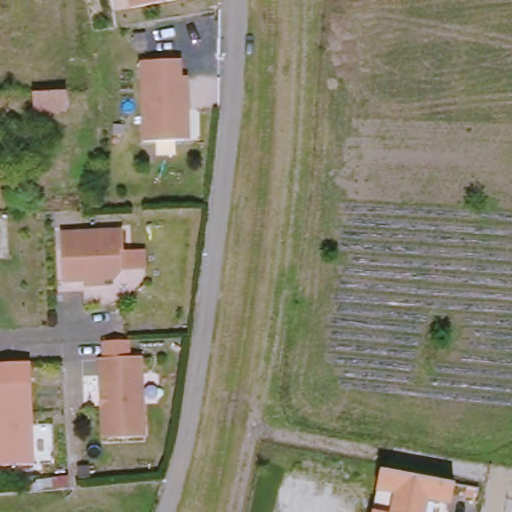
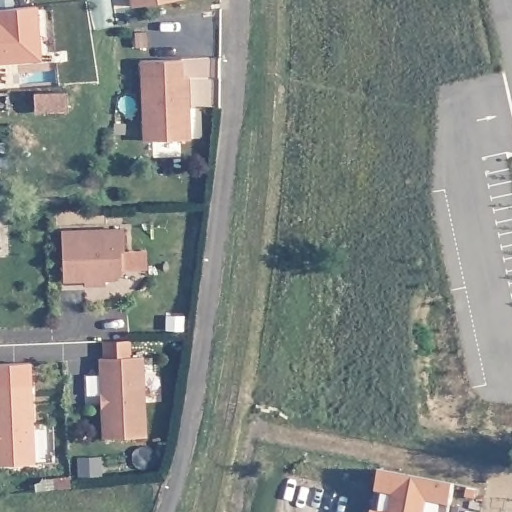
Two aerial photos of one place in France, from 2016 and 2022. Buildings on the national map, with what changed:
unchanged [(131,0),(167,0),(132,5),(131,0)]
new [(41,58),(0,61),(0,9),(38,5),(41,58)]
unchanged [(143,140),(141,59),(181,60),(181,77),(188,77),(188,109),(183,109),(183,140),(143,140)]
unchanged [(34,110),(33,93),(58,93),(58,109),(34,110)]
unchanged [(148,251),(148,270),(122,271),(122,276),(114,283),(105,283),(105,290),(85,289),(84,285),(63,285),(62,235),(125,235),(125,252),(148,251)]
unchanged [(106,407),(108,405),(108,397),(105,395),(105,358),(109,358),(109,341),(134,340),(134,358),(148,358),(149,437),(107,438),(106,407)]
unchanged [(29,360),(30,382),(33,464),(0,465),(0,361),(16,360),(29,360)]
unchanged [(457,512),(378,512),(385,476),(386,472),(463,487),(462,492),(457,512)]

